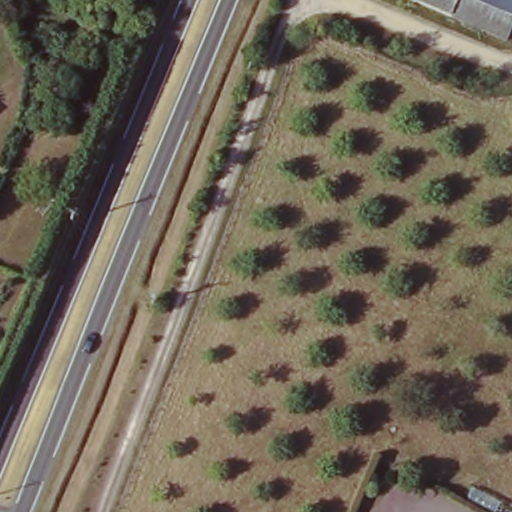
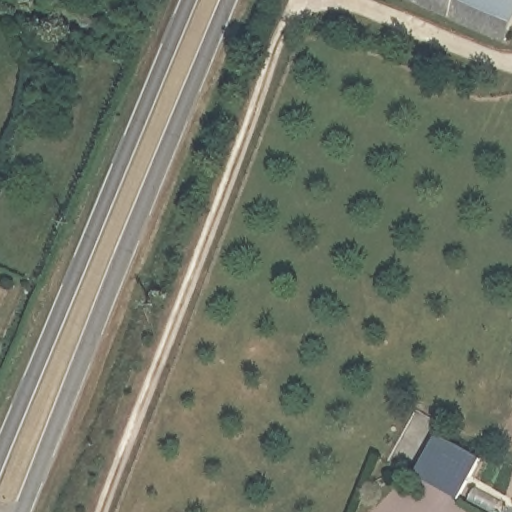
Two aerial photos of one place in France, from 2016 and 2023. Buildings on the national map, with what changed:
unchanged [(512,27),(505,42),(415,0),(512,0),(512,27)]
new [(416,473),(436,435),(479,458),(458,498),(416,473)]

